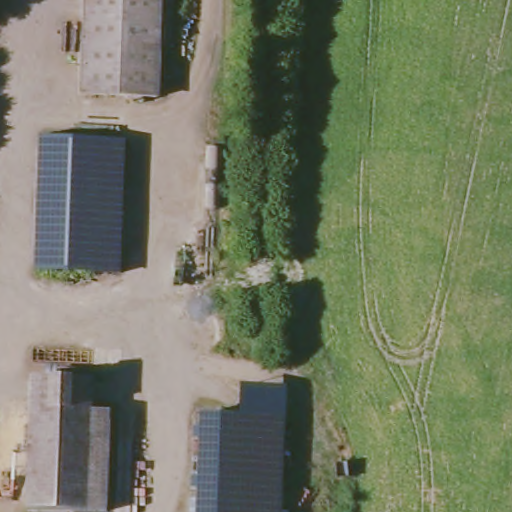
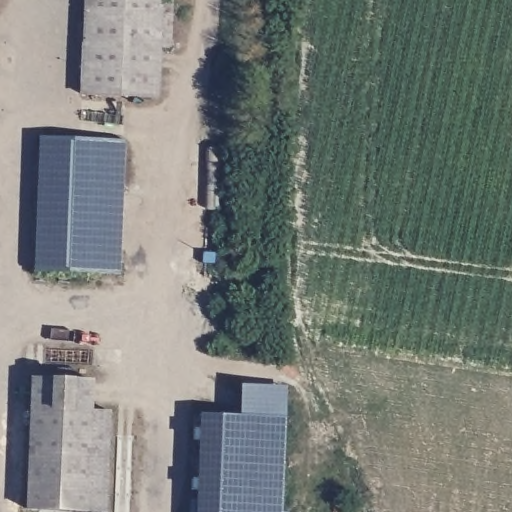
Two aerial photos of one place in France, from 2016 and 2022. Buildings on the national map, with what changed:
unchanged [(166,1),(164,51),(153,51),(150,100),(83,99),(86,0),(155,0),(166,1)]
unchanged [(40,270),(41,203),(45,137),(130,141),(126,275),(40,270)]
unchanged [(59,389),(59,381),(78,383),(78,390),(91,391),(90,422),(112,423),(108,512),(26,512),(33,389),(59,389)]
unchanged [(285,421),(281,512),(200,512),(205,416),(285,421)]

